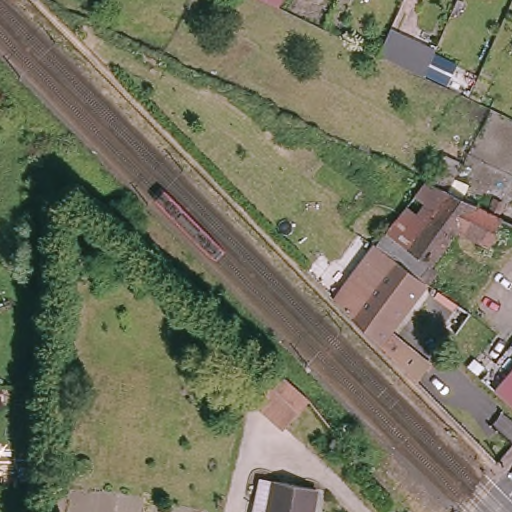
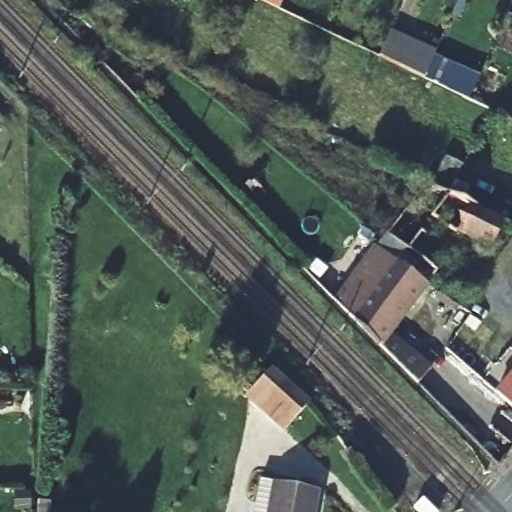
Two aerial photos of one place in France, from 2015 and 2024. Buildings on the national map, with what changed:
unchanged [(277,11),(256,0),(283,0),(277,11)]
unchanged [(399,41),(397,47),(430,61),(422,78),(377,56),(386,36),(399,41)]
unchanged [(485,244),(455,230),(427,265),(434,270),(425,282),(396,262),(377,248),(387,234),(423,180),(447,192),(458,197),(459,198),(473,205),(487,211),(497,217),(498,217),(485,244)]
unchanged [(425,282),(377,345),(352,319),(335,302),(377,248),(396,262),(425,282)]
unchanged [(284,430),(252,391),(275,370),(290,386),(310,409),(284,430)]
unchanged [(497,391),(512,375),(512,404),(497,391)]
unchanged [(280,485),(276,512),(259,512),(263,482),(280,485)]
unchanged [(318,512),(276,512),(280,485),(322,492),(318,512)]

